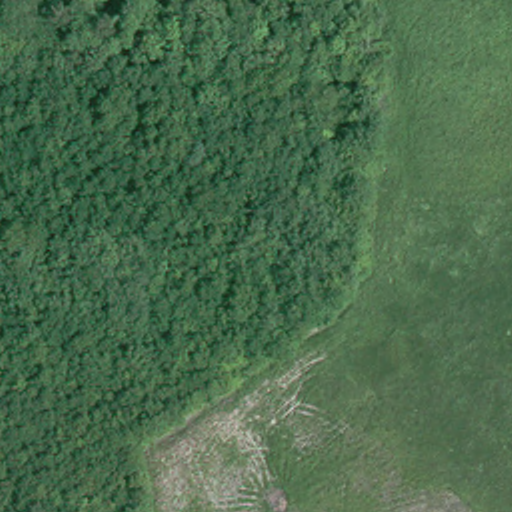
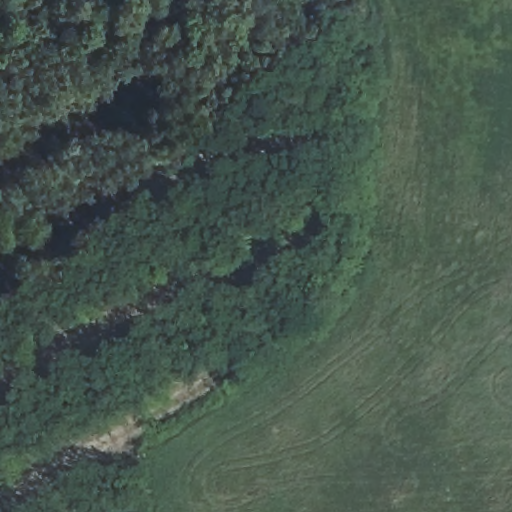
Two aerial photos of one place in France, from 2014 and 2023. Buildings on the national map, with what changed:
[]

